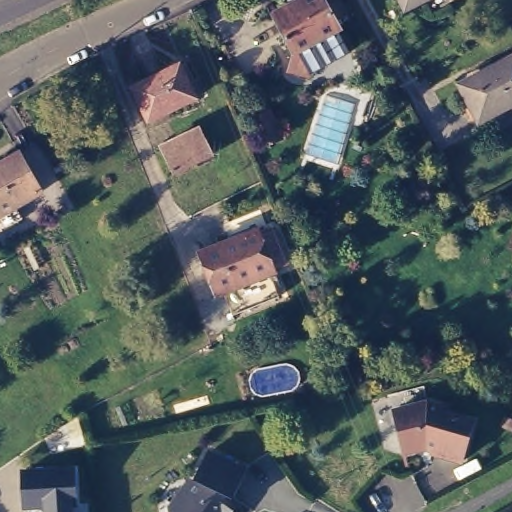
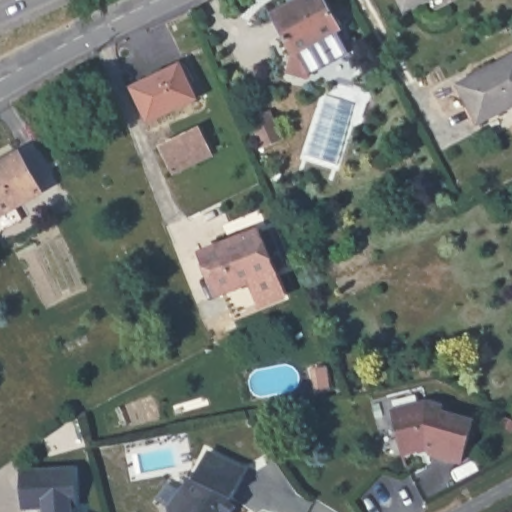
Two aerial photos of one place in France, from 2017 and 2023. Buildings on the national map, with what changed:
unchanged [(309,0),(321,0),(340,34),(337,35),(295,59),(273,20),(309,0)]
unchanged [(400,0),(424,0),(405,10),(400,0)]
unchanged [(290,71),(295,59),(337,35),(350,57),(307,81),(295,78),(288,77),(290,71)]
unchanged [(512,108),(483,123),(464,85),(512,60),(512,108)]
unchanged [(180,65),(196,99),(148,122),(132,88),(180,65)]
unchanged [(270,111),(280,136),(262,143),(252,118),(270,111)]
unchanged [(216,153),(178,172),(169,153),(166,147),(181,140),(204,129),(216,153)]
unchanged [(23,154),(46,193),(0,219),(0,167),(23,154)]
unchanged [(206,254),(263,231),(280,272),(222,295),(206,254)]
unchanged [(440,413),(473,423),(462,462),(430,453),(432,449),(421,446),(420,449),(411,451),(401,445),(392,412),(427,403),(442,404),(440,413)]
unchanged [(232,497),(239,502),(231,512),(168,512),(168,509),(182,490),(187,483),(184,480),(187,476),(194,480),(207,453),(245,471),(232,497)]
unchanged [(28,511),(28,510),(29,509),(29,508),(30,508),(30,507),(24,508),(22,473),(72,470),(74,505),(69,505),(69,512),(28,512),(28,511)]

